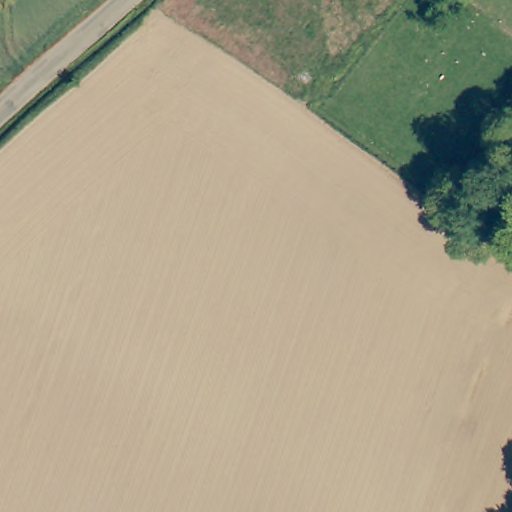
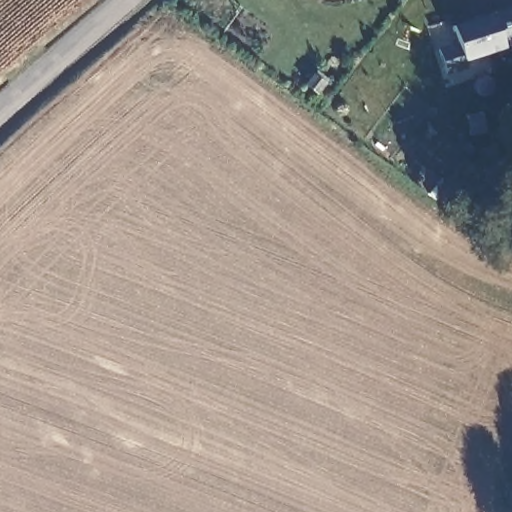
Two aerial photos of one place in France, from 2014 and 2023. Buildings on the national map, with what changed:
new [(454,41),(449,24),(491,13),(512,6),(512,44),(503,47),(465,59),(467,68),(448,75),(436,45),(454,41)]

